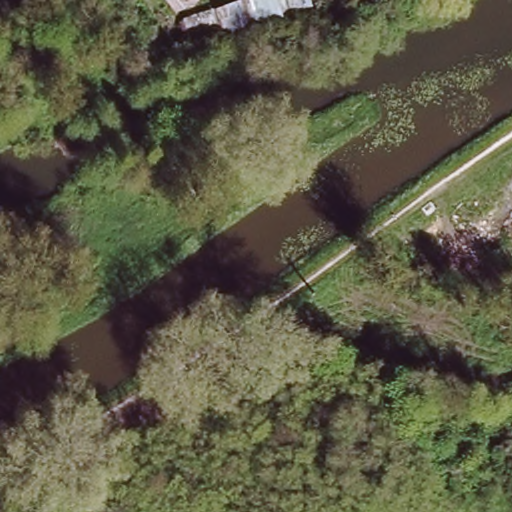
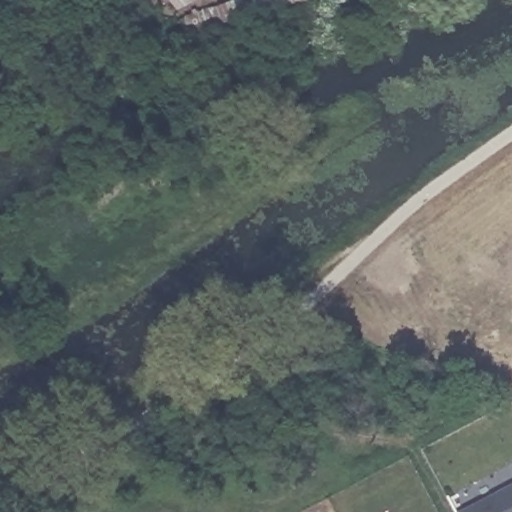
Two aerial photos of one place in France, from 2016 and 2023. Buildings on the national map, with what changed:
unchanged [(200,2),(179,12),(169,0),(198,0),(200,2)]
unchanged [(215,8),(237,0),(310,0),(314,10),(287,20),(229,38),(192,40),(182,16),(215,8)]
new [(512,512),(462,512),(512,486),(512,512)]

